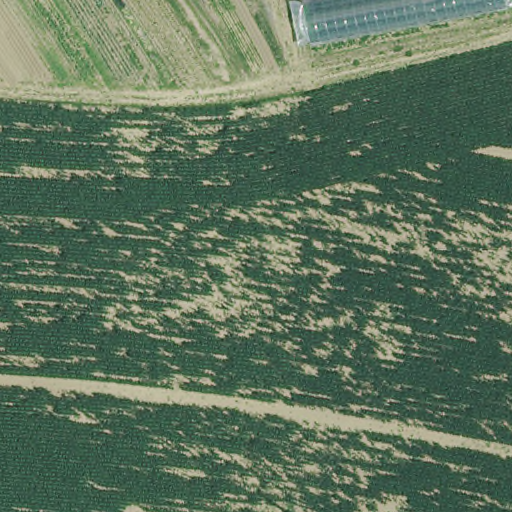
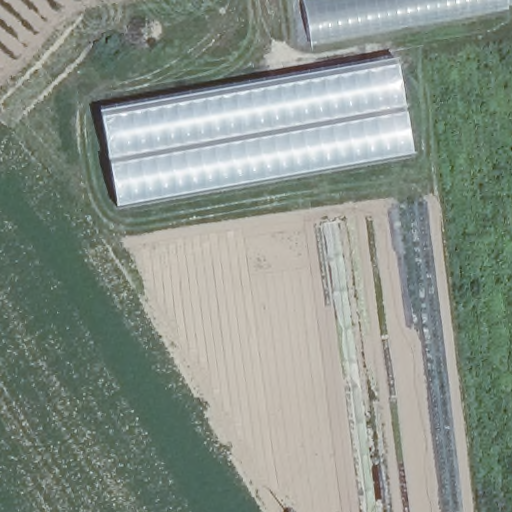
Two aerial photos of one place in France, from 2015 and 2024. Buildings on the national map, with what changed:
unchanged [(292,0),(294,0),(512,0),(512,9),(300,46),(292,0)]
new [(419,163),(113,210),(102,115),(401,64),(419,163)]

